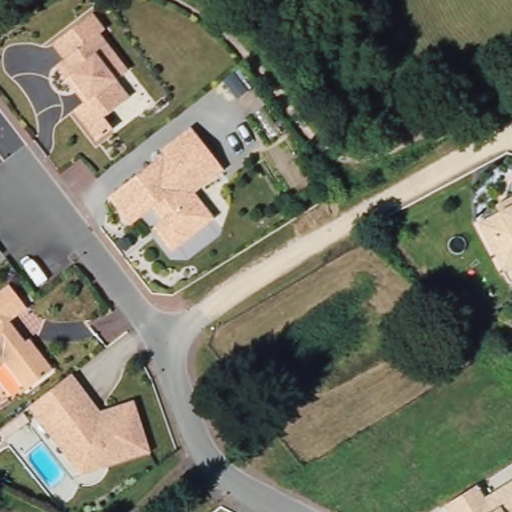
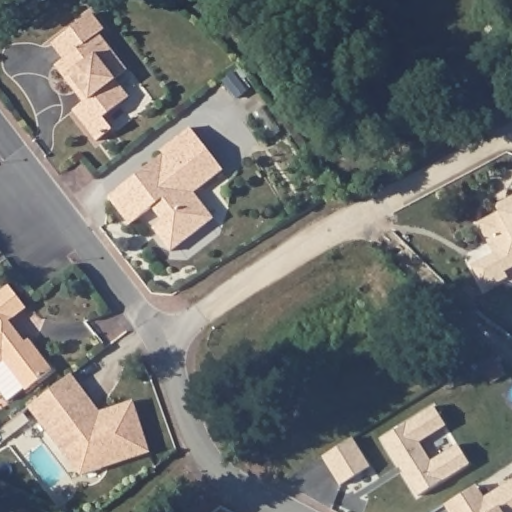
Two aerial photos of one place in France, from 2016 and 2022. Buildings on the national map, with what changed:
unchanged [(61,61),(69,55),(58,40),(97,9),(110,25),(105,30),(133,66),(121,75),(135,93),(109,113),(118,125),(103,136),(79,106),(90,98),(81,87),(61,61)]
unchanged [(159,225),(163,221),(153,209),(131,226),(109,197),(164,155),(161,151),(191,129),(224,171),(194,194),(214,220),(172,252),(159,235),(154,229),(159,225)]
unchanged [(499,276),(471,223),(495,210),(493,204),(512,194),(512,270),(499,276)]
unchanged [(31,337),(35,335),(58,365),(31,385),(9,355),(0,362),(0,290),(14,280),(31,303),(15,316),(31,337)]
unchanged [(46,419),(34,403),(65,378),(76,370),(88,386),(46,419)]
unchanged [(46,419),(88,386),(101,403),(107,407),(138,397),(154,448),(112,462),(86,470),(68,448),(46,419)]
new [(434,408),(446,427),(419,444),(431,463),(458,446),(470,465),(417,497),(382,440),(434,408)]
new [(351,442),(369,470),(339,488),(321,460),(351,442)]
unchanged [(445,506),(466,493),(477,486),(485,500),(512,482),(512,512),(448,512),(445,506)]

